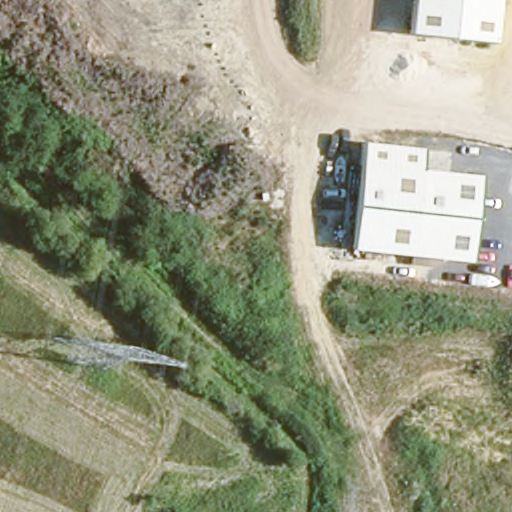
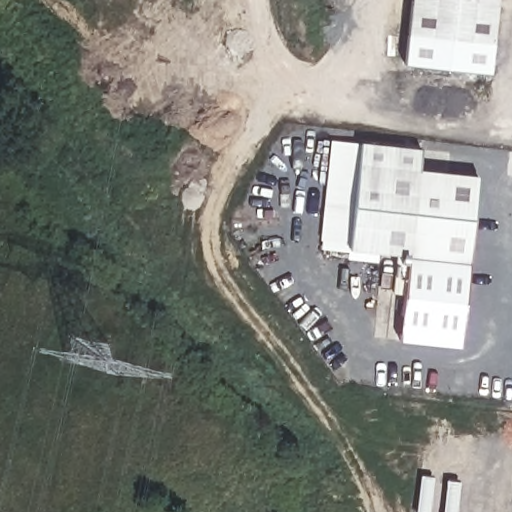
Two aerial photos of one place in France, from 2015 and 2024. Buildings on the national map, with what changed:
unchanged [(412,0),(499,0),(494,44),(408,35),(412,0)]
new [(492,44),(489,73),(403,64),(406,35),(408,35),(492,44)]
new [(319,249),(330,140),(361,143),(350,252),(319,249)]
unchanged [(410,259),(350,252),(361,143),(421,149),(420,170),(410,259)]
unchanged [(477,175),(467,265),(410,259),(420,170),(477,175)]
new [(467,265),(464,302),(466,302),(459,347),(399,341),(410,259),(467,265)]

